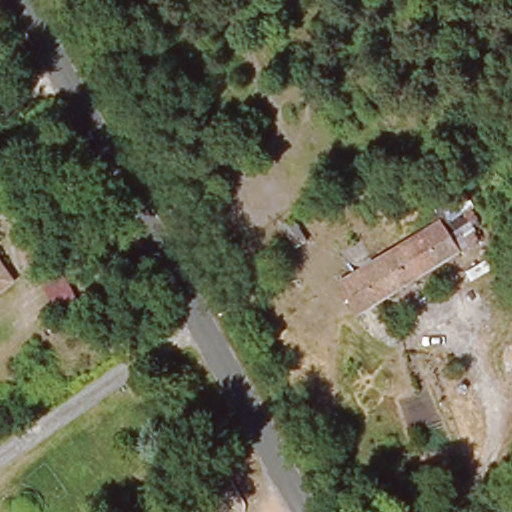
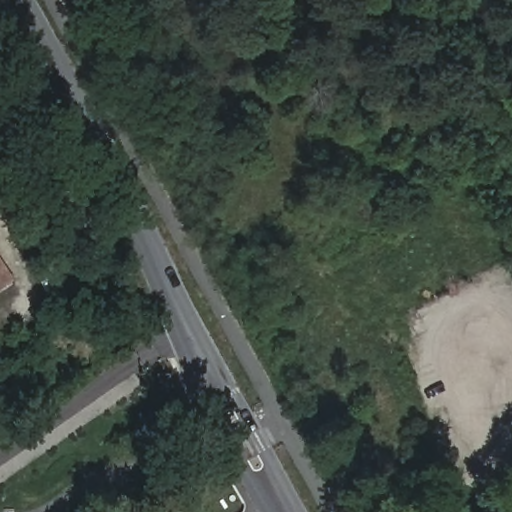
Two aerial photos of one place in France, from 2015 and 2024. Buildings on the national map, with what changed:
demolished [(296,217),(307,240),(290,248),(278,226),(296,217)]
demolished [(456,248),(458,250),(357,314),(336,281),(437,217),(456,248)]
unchanged [(8,274),(0,280),(0,261),(8,274)]

